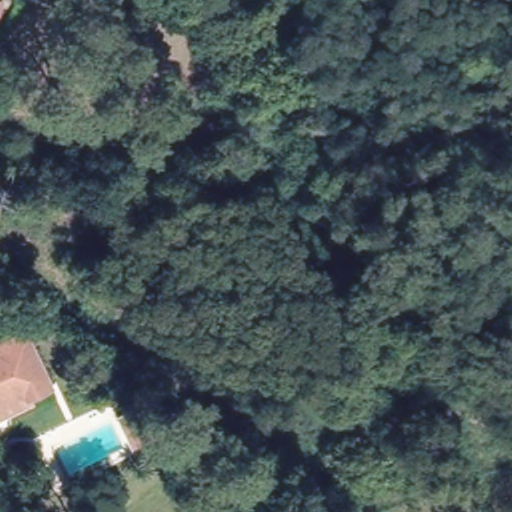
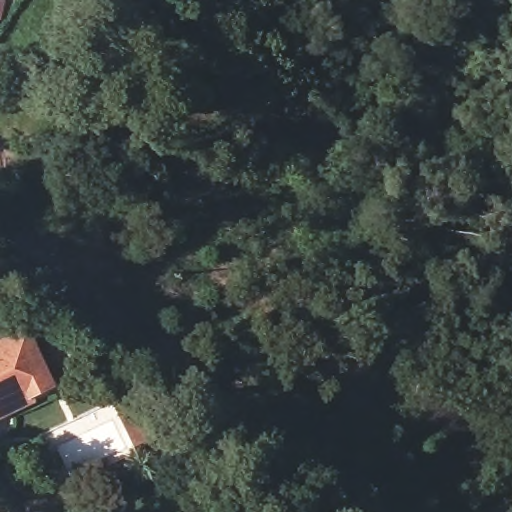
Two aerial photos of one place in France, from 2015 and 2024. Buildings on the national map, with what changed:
unchanged [(280,42),(275,72),(265,70),(268,40),(280,42)]
unchanged [(55,391),(31,402),(30,400),(0,413),(0,353),(30,338),(55,391)]
unchanged [(117,416),(137,406),(151,437),(132,446),(117,416)]

